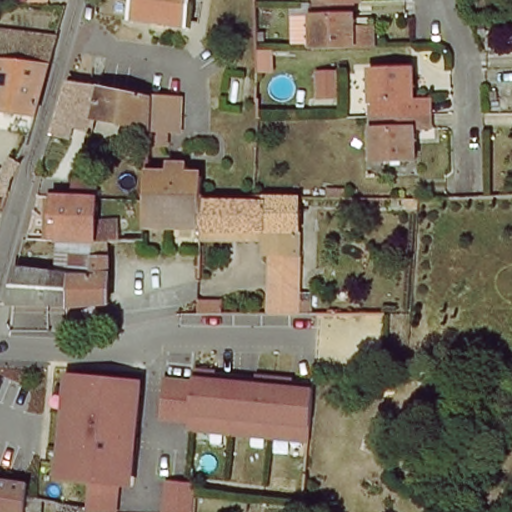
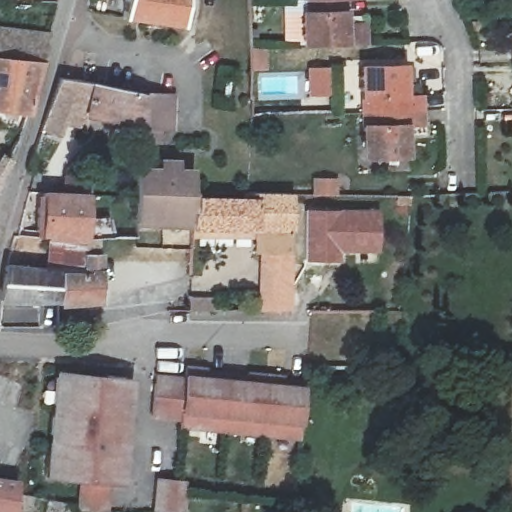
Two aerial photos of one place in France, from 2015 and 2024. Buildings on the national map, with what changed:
unchanged [(123,18),(126,0),(187,0),(183,26),(123,18)]
unchanged [(306,9),(306,1),(332,0),(347,0),(348,28),(368,29),(369,44),(303,46),(303,45),(285,46),(284,9),(306,9)]
unchanged [(306,0),(332,0),(306,1),(306,0)]
unchanged [(0,25),(49,29),(36,78),(28,108),(0,105),(0,25)]
unchanged [(369,116),(369,66),(412,65),(412,97),(428,97),(429,115),(369,116)]
unchanged [(86,116),(84,127),(47,119),(60,79),(67,80),(80,83),(92,85),(133,94),(142,96),(140,128),(86,116)]
unchanged [(142,96),(171,98),(169,131),(156,130),(155,144),(138,143),(139,141),(140,128),(142,96)]
unchanged [(429,115),(429,129),(413,129),(413,161),(369,164),(369,116),(429,115)]
unchanged [(136,172),(155,172),(155,161),(174,161),(174,172),(189,172),(189,191),(182,191),(178,191),(135,190),(135,188),(136,172)]
unchanged [(60,186),(60,168),(85,169),(85,187),(60,186)]
unchanged [(1,178),(0,179),(0,171),(3,174),(1,178)]
new [(312,177),(340,178),(339,197),(312,196),(312,177)]
unchanged [(68,232),(51,231),(45,230),(49,188),(90,190),(87,233),(68,232)]
unchanged [(178,191),(182,191),(189,191),(192,191),(192,199),(191,223),(151,221),(132,221),(135,190),(178,191)]
unchanged [(288,307),(260,307),(262,250),(252,249),(251,228),(191,225),(191,223),(192,199),(243,199),(243,192),(284,192),(291,192),(288,307)]
new [(305,208),(381,208),(381,255),(343,254),(343,263),(303,261),(305,208)]
unchanged [(78,251),(77,265),(56,266),(55,296),(0,298),(0,282),(4,265),(48,265),(51,231),(68,232),(87,233),(92,233),(94,233),(95,251),(78,251)]
unchanged [(95,296),(55,298),(55,296),(56,266),(77,265),(78,251),(95,251),(95,296)]
new [(189,296),(240,301),(240,310),(230,310),(230,317),(189,319),(189,296)]
unchanged [(175,431),(177,426),(150,422),(154,376),(181,382),(183,371),(301,385),(300,424),(295,440),(175,431)]
unchanged [(73,510),(79,483),(44,479),(53,373),(129,382),(121,486),(111,485),(107,512),(73,510)]
unchanged [(0,477),(16,480),(15,491),(13,512),(0,512),(0,477)]
unchanged [(153,479),(185,484),(183,512),(148,512),(153,479)]
unchanged [(27,512),(13,512),(15,491),(28,493),(27,512)]
unchanged [(45,504),(72,509),(72,512),(43,512),(45,504)]

